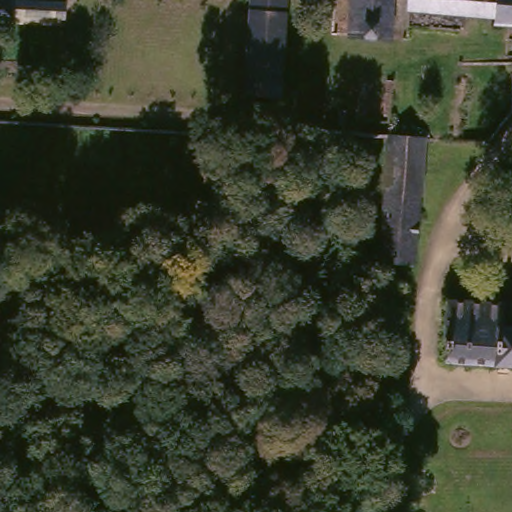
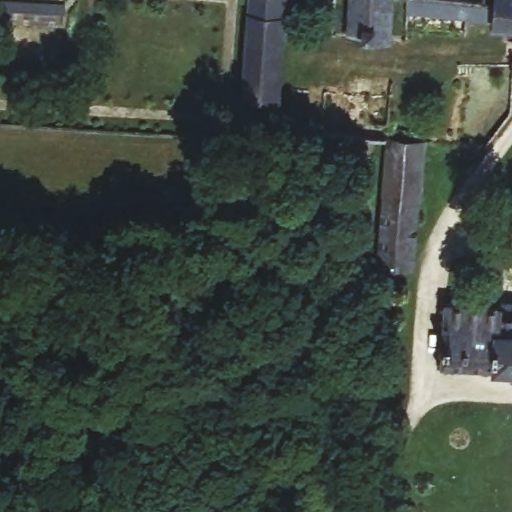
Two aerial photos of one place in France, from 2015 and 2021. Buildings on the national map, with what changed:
unchanged [(284,19),(283,38),(242,35),(245,0),(286,0),(284,19)]
unchanged [(351,40),(351,26),(352,0),(393,0),(391,29),(390,43),(351,40)]
unchanged [(493,22),(406,13),(406,0),(493,0),(493,22)]
unchanged [(512,24),(493,22),(493,0),(512,0),(512,24)]
unchanged [(277,104),(236,103),(242,35),(283,38),(277,104)]
unchanged [(428,139),(423,195),(376,192),(380,137),(428,139)]
unchanged [(423,195),(416,269),(371,266),(376,192),(423,195)]
unchanged [(512,297),(512,371),(441,367),(446,300),(506,302),(506,296),(512,297)]

